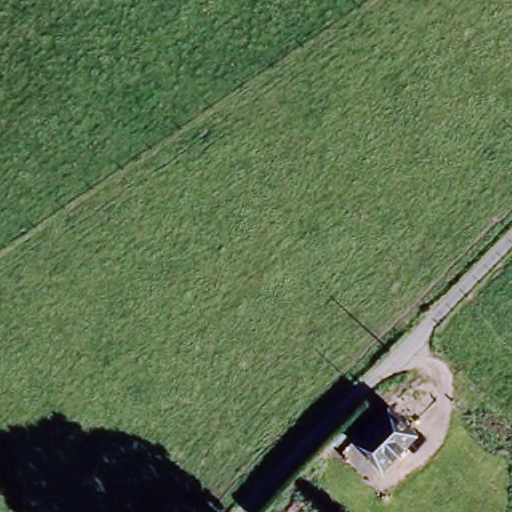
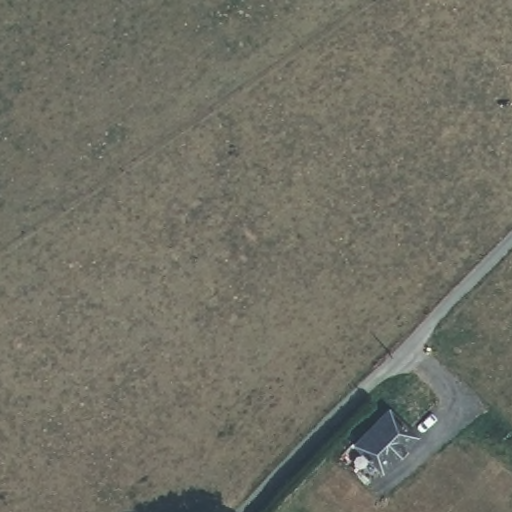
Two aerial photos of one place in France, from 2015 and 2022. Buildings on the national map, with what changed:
unchanged [(388,408),(419,437),(383,472),(353,442),(388,408)]

